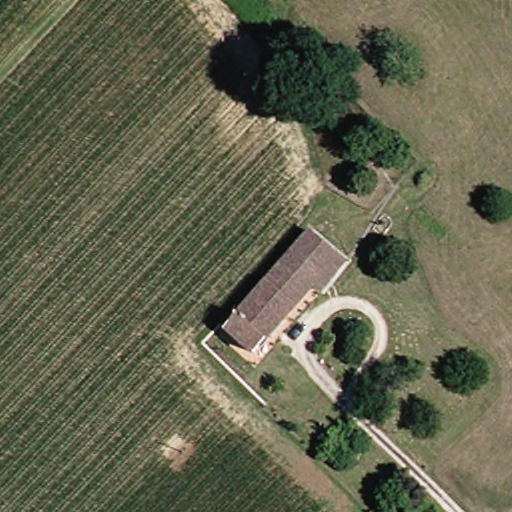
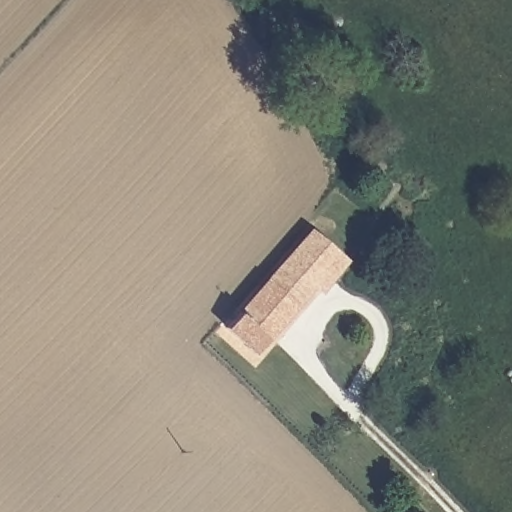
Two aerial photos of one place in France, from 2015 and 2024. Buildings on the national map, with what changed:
unchanged [(386,169),(373,180),(358,164),(371,152),(386,169)]
unchanged [(228,318),(232,322),(309,231),(346,263),(322,292),(314,285),(255,354),(226,328),(222,326),(228,318)]

